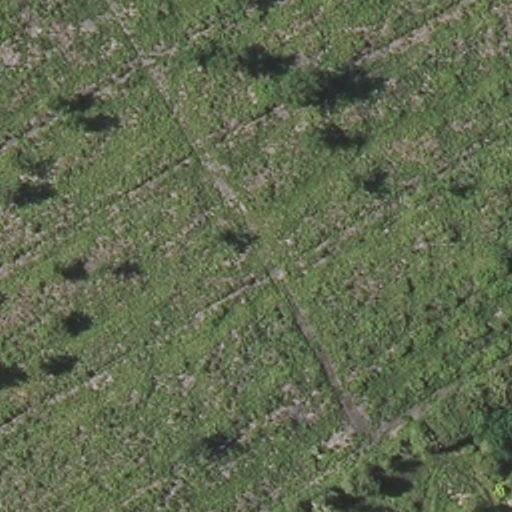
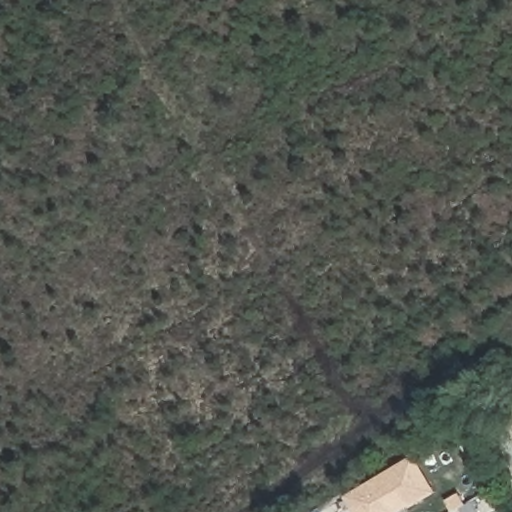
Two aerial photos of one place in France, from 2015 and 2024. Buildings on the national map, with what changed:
new [(437,493),(405,512),(355,512),(345,495),(414,455),(437,493)]

